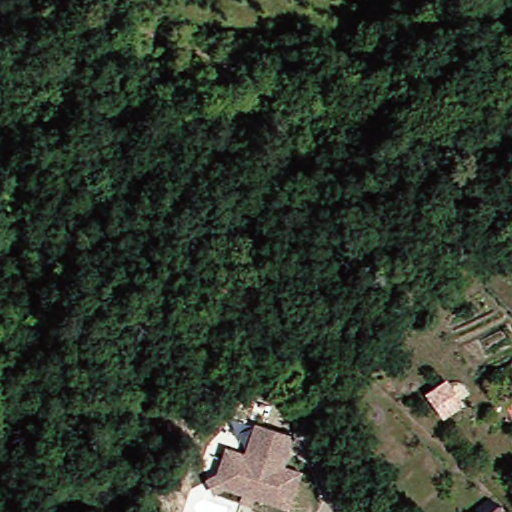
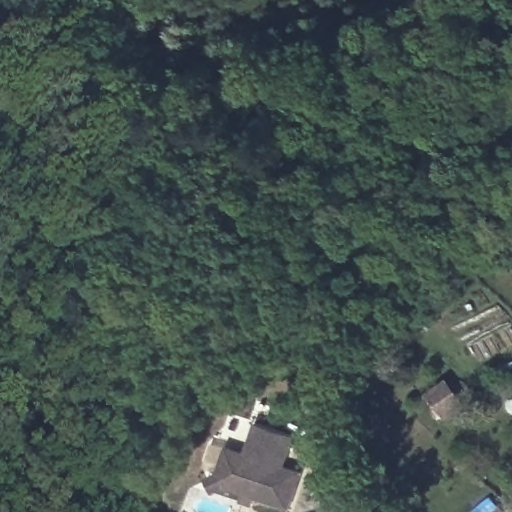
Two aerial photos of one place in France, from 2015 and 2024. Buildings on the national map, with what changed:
unchanged [(233,483),(223,489),(213,474),(223,467),(232,441),(250,447),(260,416),(299,429),(289,460),(307,466),(294,503),(260,491),(257,500),(247,497),(249,488),(233,483)]

